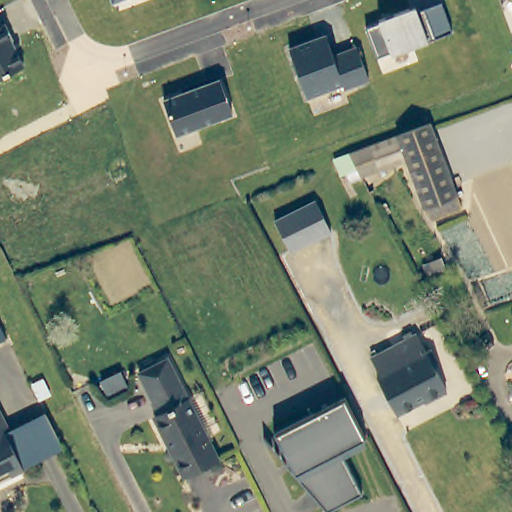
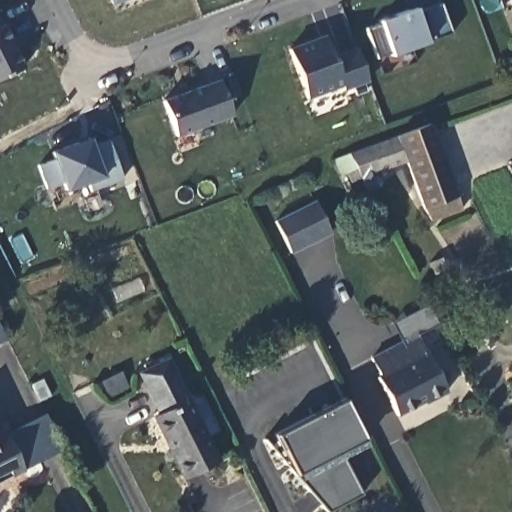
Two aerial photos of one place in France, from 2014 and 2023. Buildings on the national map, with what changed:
unchanged [(112,0),(122,0),(113,4),(112,0)]
unchanged [(429,41),(393,54),(379,56),(369,29),(383,26),(381,19),(416,6),(418,12),(441,4),(452,33),(429,41)]
unchanged [(9,24),(16,39),(14,40),(27,65),(0,79),(0,16),(4,25),(9,24)]
unchanged [(348,87),(346,83),(310,96),(292,47),(328,33),(336,54),(359,45),(372,78),(348,87)]
unchanged [(177,135),(164,99),(219,79),(233,114),(177,135)]
unchanged [(463,209),(429,223),(407,160),(362,178),(349,153),(431,122),(463,209)]
new [(93,191),(91,182),(65,191),(63,182),(48,188),(38,164),(54,158),(52,151),(90,136),(94,146),(109,139),(123,178),(93,191)]
unchanged [(315,199),(331,230),(290,250),(275,219),(315,199)]
unchanged [(0,336),(0,326),(4,334),(0,336)]
unchanged [(431,353),(434,351),(442,365),(440,371),(451,393),(429,404),(426,403),(401,417),(381,379),(384,377),(374,359),(421,335),(431,353)]
unchanged [(168,356),(221,459),(188,476),(155,413),(161,410),(140,369),(168,356)]
unchanged [(297,479),(290,465),(276,437),(347,401),(368,443),(343,456),(364,499),(336,512),(325,512),(297,479)]
unchanged [(43,413),(61,449),(22,469),(4,433),(43,413)]
unchanged [(0,480),(0,417),(6,429),(3,431),(4,433),(22,469),(0,480)]

